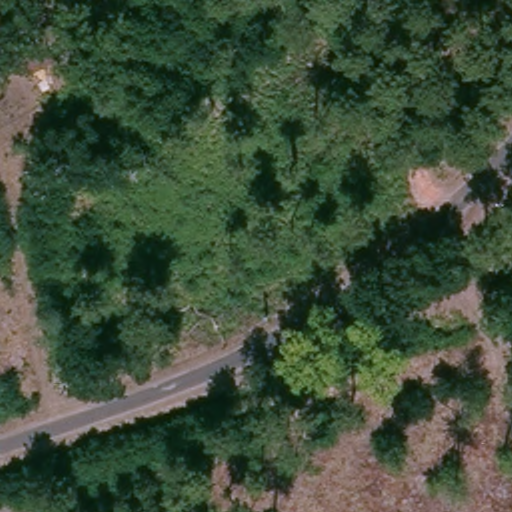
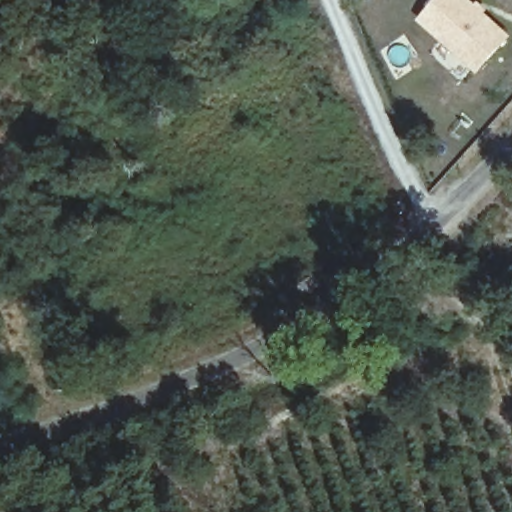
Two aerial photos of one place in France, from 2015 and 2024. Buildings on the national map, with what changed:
new [(433,0),(473,0),(512,35),(476,74),(416,19),(433,0)]
unchanged [(26,38),(37,66),(20,74),(8,45),(26,38)]

